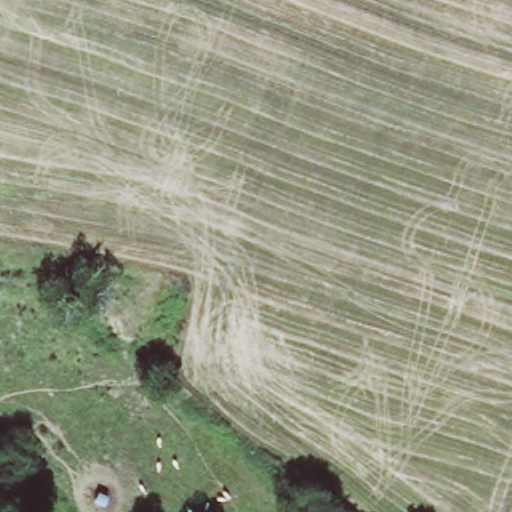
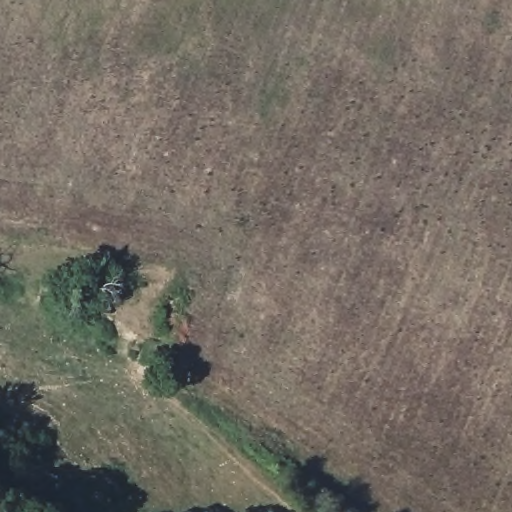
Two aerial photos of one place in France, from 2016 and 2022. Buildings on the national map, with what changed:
[]

